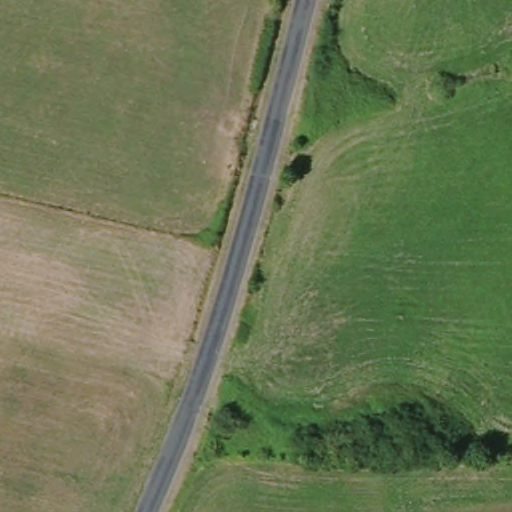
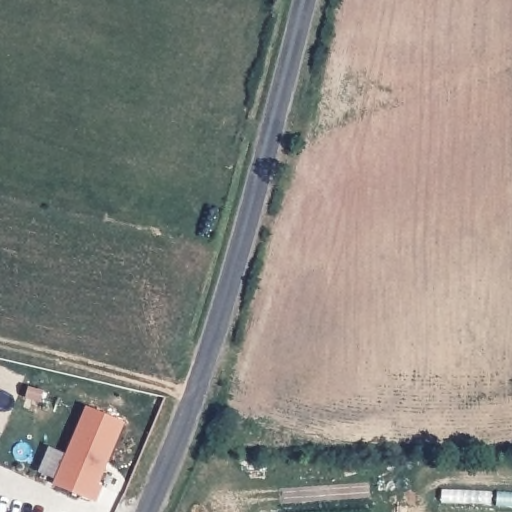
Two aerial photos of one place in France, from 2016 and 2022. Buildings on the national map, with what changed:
new [(54,484),(56,478),(42,472),(50,447),(66,454),(87,407),(126,424),(100,486),(103,488),(96,502),(54,484)]

